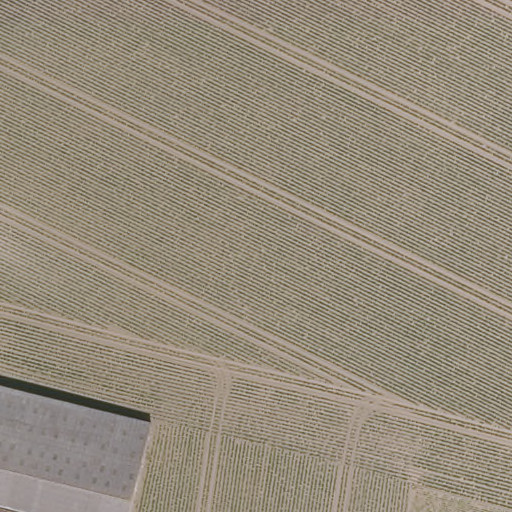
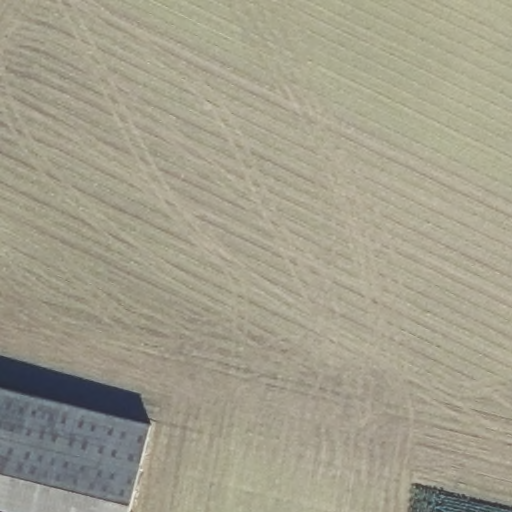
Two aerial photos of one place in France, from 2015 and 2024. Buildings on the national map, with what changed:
unchanged [(129,512),(0,512),(0,387),(151,424),(129,512)]

